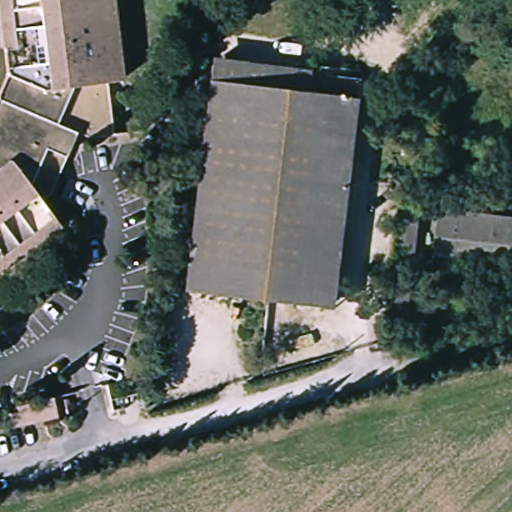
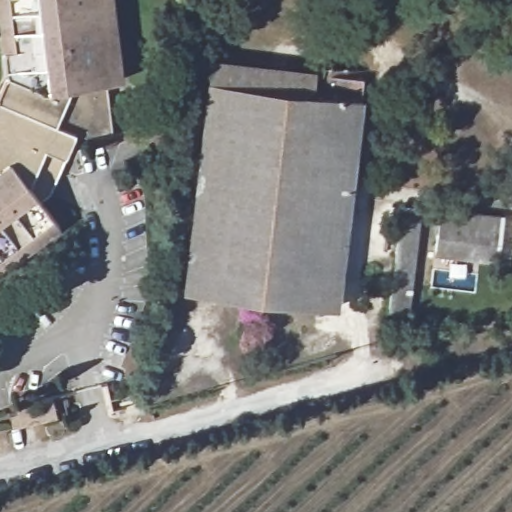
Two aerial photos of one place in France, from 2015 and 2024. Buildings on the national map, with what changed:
unchanged [(107,0),(117,85),(99,87),(107,141),(80,145),(63,139),(42,195),(28,205),(52,236),(0,276),(0,67),(0,0),(107,0)]
unchanged [(321,78),(302,288),(193,279),(199,214),(212,69),(253,72),(321,78)]
unchanged [(358,81),(340,291),(302,288),(321,78),(358,81)]
unchanged [(415,214),(401,325),(384,323),(398,212),(415,214)]
unchanged [(439,215),(512,221),(512,244),(437,239),(439,215)]
unchanged [(437,239),(512,244),(512,264),(435,259),(437,239)]
unchanged [(55,414),(8,422),(5,407),(15,405),(15,400),(51,392),(55,414)]

